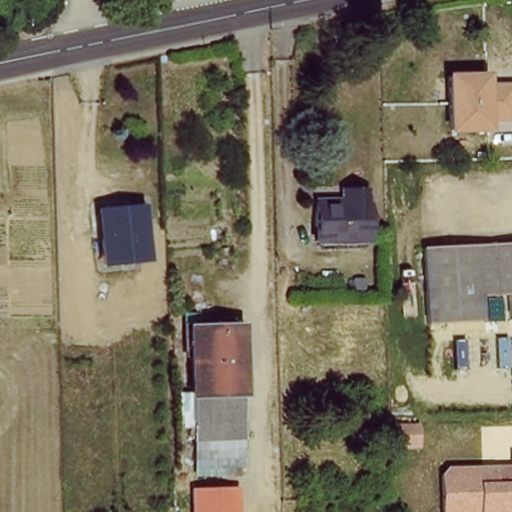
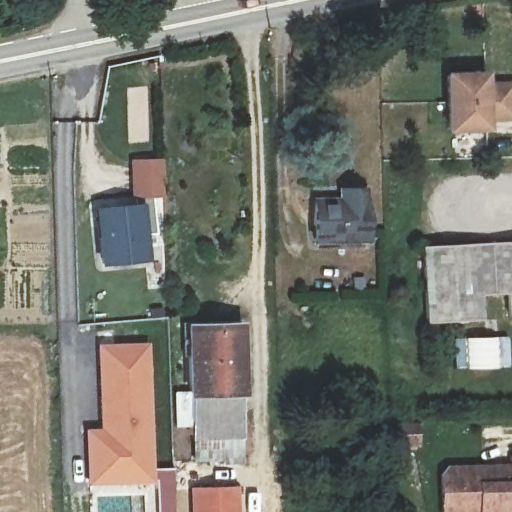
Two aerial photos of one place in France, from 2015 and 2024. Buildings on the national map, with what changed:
unchanged [(446,75),(488,74),(489,84),(512,83),(512,118),(489,120),(490,132),(449,132),(446,75)]
unchanged [(367,192),(370,243),(319,244),(317,196),(367,192)]
unchanged [(140,210),(147,261),(102,266),(96,214),(140,210)]
unchanged [(512,242),(512,317),(506,317),(506,292),(481,293),(482,318),(425,319),(424,244),(512,242)]
unchanged [(194,474),(191,396),(188,326),(244,325),(245,398),(243,473),(194,474)]
new [(86,485),(85,430),(101,431),(98,346),(148,344),(152,483),(86,485)]
unchanged [(383,432),(384,466),(363,468),(363,450),(352,450),(354,432),(383,432)]
unchanged [(440,474),(446,466),(512,464),(512,512),(442,512),(440,474)]
unchanged [(239,488),(239,512),(191,512),(190,489),(239,488)]

